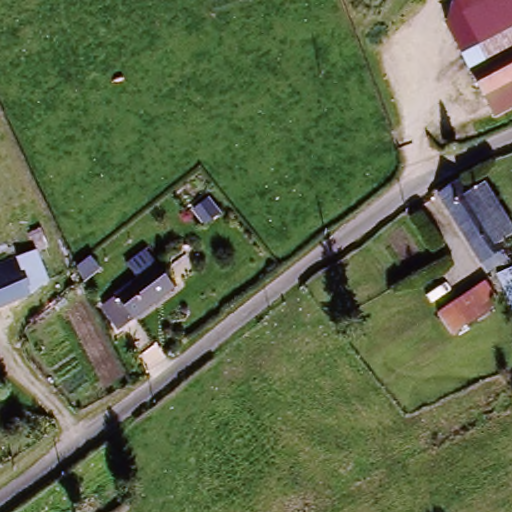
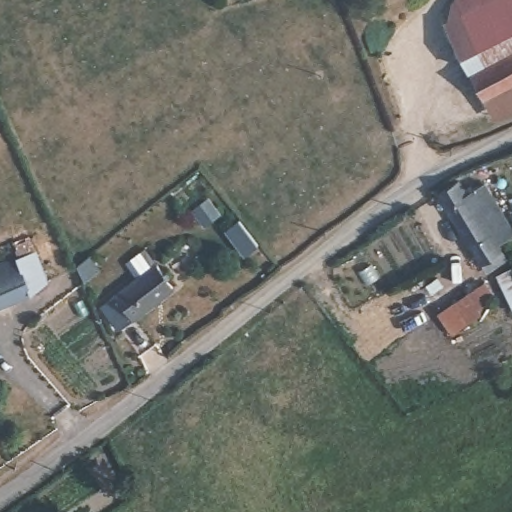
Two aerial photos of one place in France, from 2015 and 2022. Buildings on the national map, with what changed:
unchanged [(484,61),(451,4),(457,0),(512,0),(512,62),(492,74),(484,61)]
unchanged [(492,74),(512,62),(512,97),(491,110),(469,70),(484,61),(492,74)]
unchanged [(512,97),(512,111),(497,119),(491,110),(512,97)]
unchanged [(512,229),(512,230),(494,241),(505,258),(483,272),(435,194),(456,182),(464,194),(482,182),(512,229)]
unchanged [(16,260),(35,253),(48,286),(32,300),(0,311),(0,279),(20,271),(16,260)]
unchanged [(110,305),(124,295),(161,266),(179,289),(141,319),(128,328),(110,305)]
unchanged [(512,271),(512,306),(494,276),(510,267),(512,271)]
unchanged [(450,340),(435,316),(480,288),(490,303),(476,313),(482,319),(450,340)]

